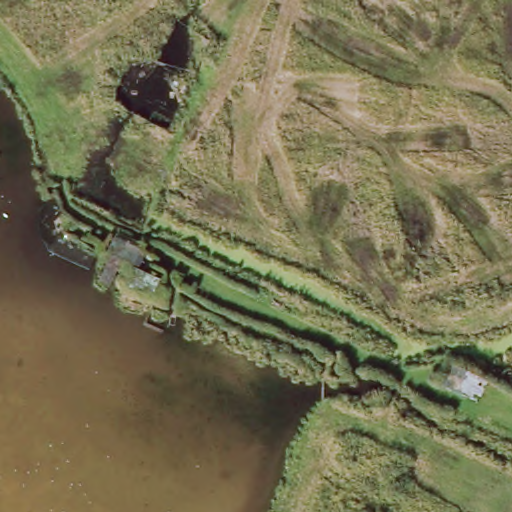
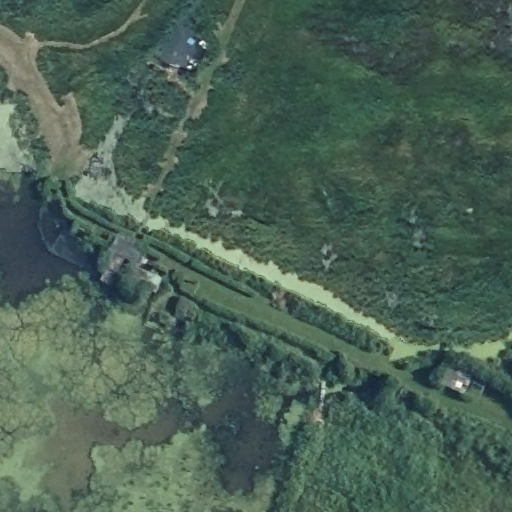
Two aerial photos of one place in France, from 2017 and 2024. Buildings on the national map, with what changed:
unchanged [(118,234),(147,247),(140,268),(122,263),(111,284),(100,279),(118,234)]
unchanged [(160,280),(154,298),(125,286),(132,270),(160,280)]
unchanged [(440,386),(449,367),(472,378),(462,397),(440,386)]

